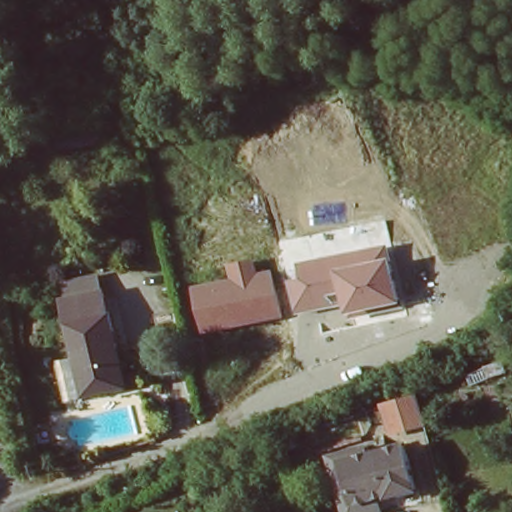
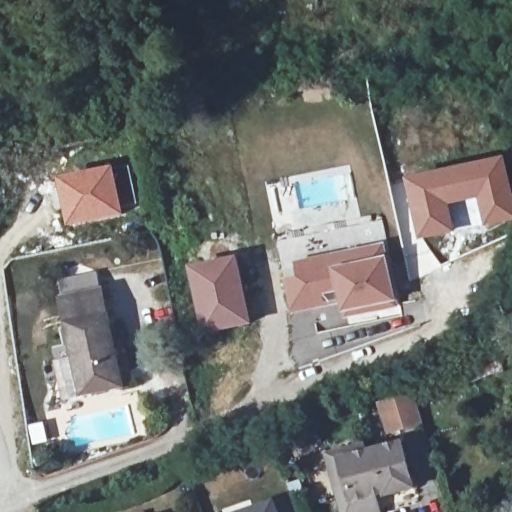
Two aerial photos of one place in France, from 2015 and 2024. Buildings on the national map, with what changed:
new [(512,177),(512,222),(485,229),(479,201),(452,207),(457,234),(420,242),(406,180),(507,157),(512,177)]
new [(94,170),(129,165),(138,207),(125,210),(126,216),(69,229),(57,179),(94,170)]
unchanged [(345,319),(341,305),(292,315),(286,280),(298,277),(295,262),(387,245),(399,308),(345,319)]
unchanged [(280,316),(201,332),(191,286),(229,278),(227,263),(255,259),(258,272),(272,271),(280,316)]
unchanged [(69,352),(61,297),(103,292),(117,385),(82,390),(75,391),(69,352)]
unchanged [(378,404),(416,393),(425,427),(387,436),(378,404)]
unchanged [(382,512),(341,512),(326,455),(367,445),(369,452),(406,443),(419,490),(379,498),(382,512)]
new [(289,495),(296,512),(246,512),(276,501),(289,495)]

